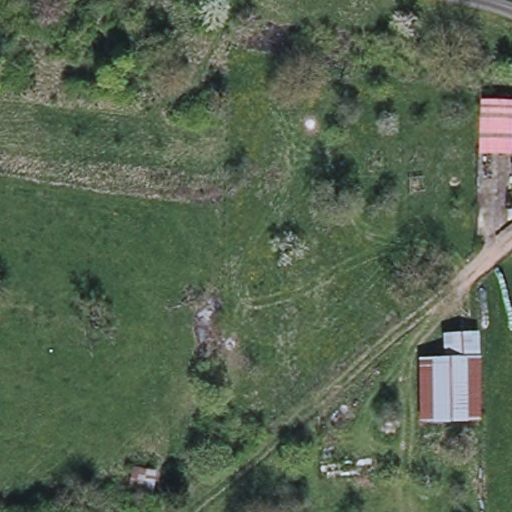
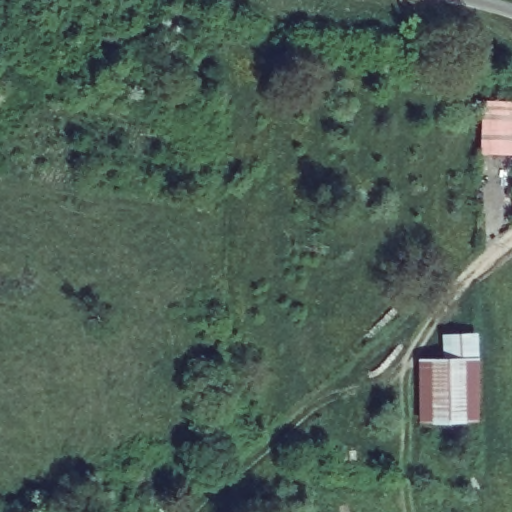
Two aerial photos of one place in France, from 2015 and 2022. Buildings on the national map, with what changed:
unchanged [(480,98),(512,99),(512,153),(479,151),(480,98)]
unchanged [(449,363),(449,335),(479,335),(480,419),(425,421),(424,364),(449,363)]
unchanged [(160,468),(154,505),(128,500),(134,465),(160,468)]

